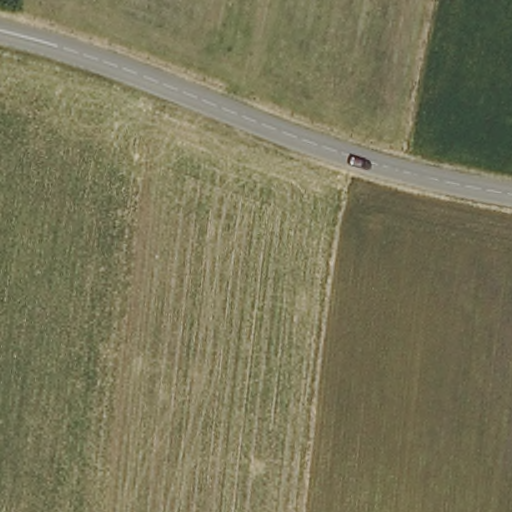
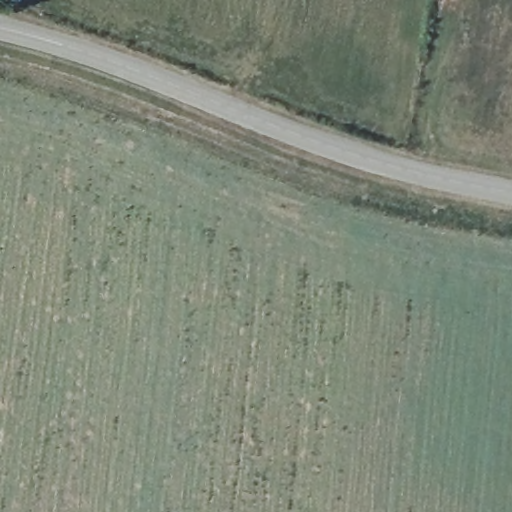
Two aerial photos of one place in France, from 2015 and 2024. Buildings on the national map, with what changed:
[]

